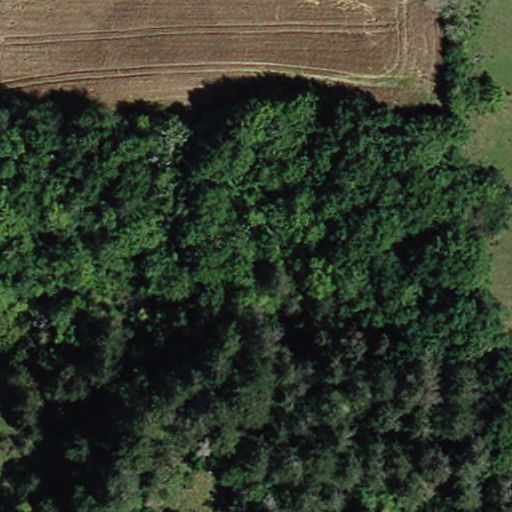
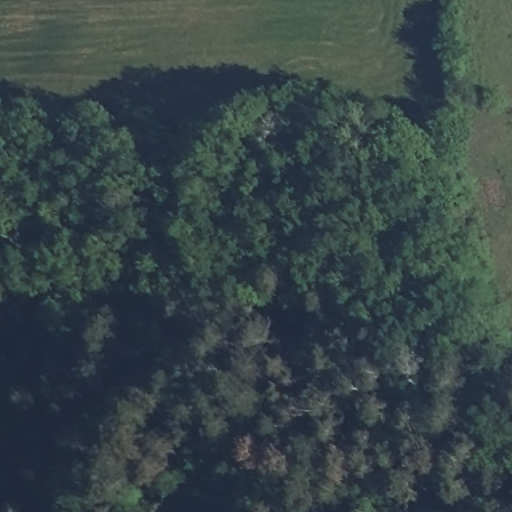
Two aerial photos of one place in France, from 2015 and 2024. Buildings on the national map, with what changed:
unchanged [(455,6),(439,6),(439,0),(455,0),(455,6)]

